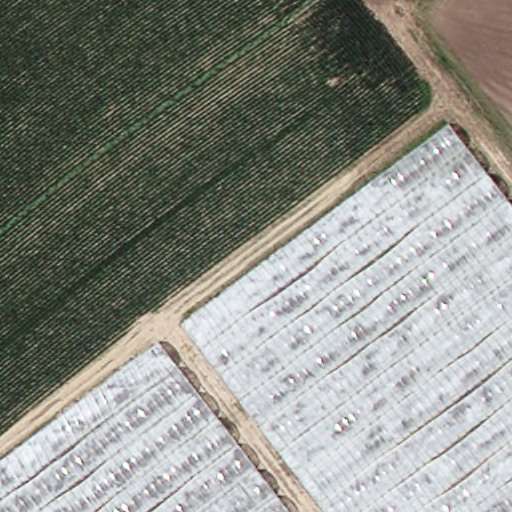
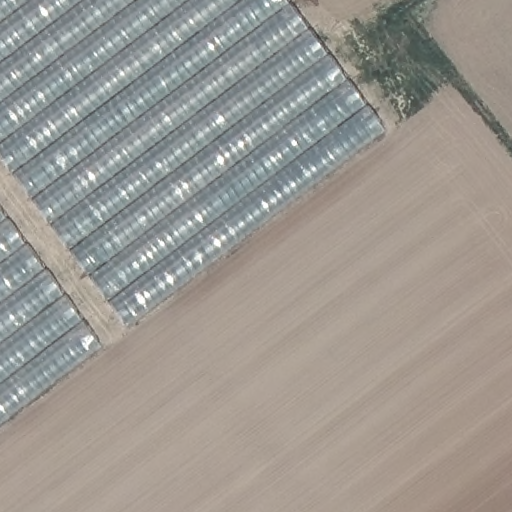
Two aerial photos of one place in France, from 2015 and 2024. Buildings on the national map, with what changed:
new [(385,131),(127,327),(0,157),(0,0),(288,0),(385,131)]
demolished [(450,120),(81,408),(0,305),(0,0),(351,0),(450,120)]
new [(512,512),(326,512),(183,323),(450,124),(512,206),(512,512)]
new [(101,347),(0,425),(0,210),(101,347)]
new [(289,512),(0,512),(0,461),(159,344),(289,512)]

